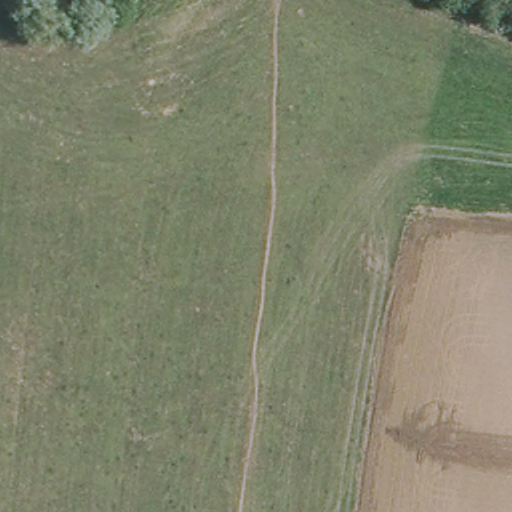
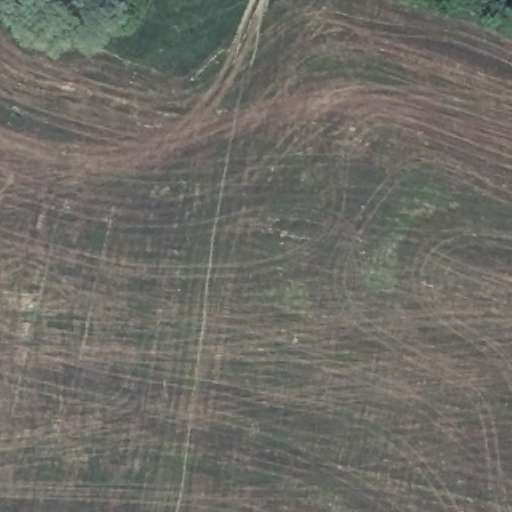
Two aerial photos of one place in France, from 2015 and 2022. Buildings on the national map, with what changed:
[]

